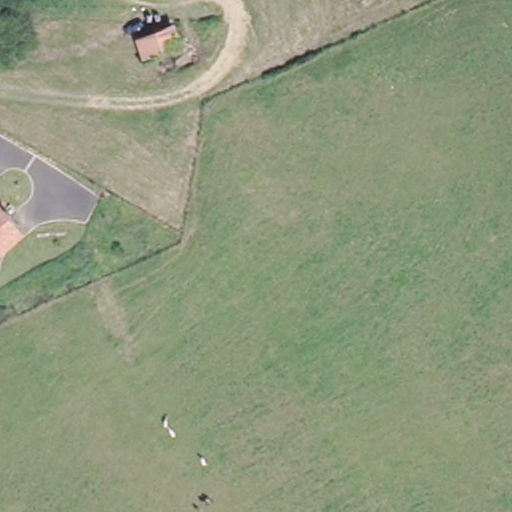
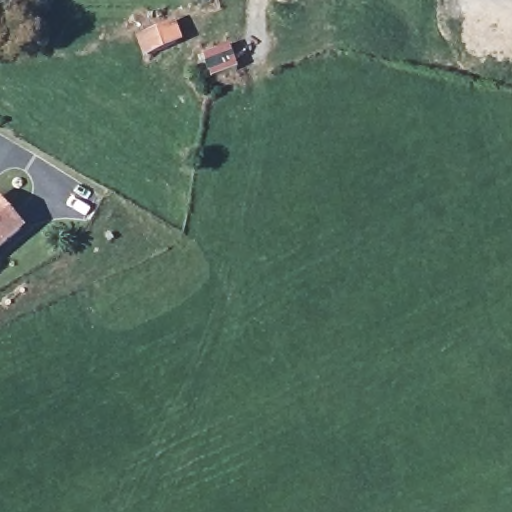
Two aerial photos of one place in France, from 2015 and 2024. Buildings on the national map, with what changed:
unchanged [(173,24),(181,42),(151,53),(149,53),(142,36),(173,24)]
unchanged [(18,225),(0,242),(0,206),(18,225)]

